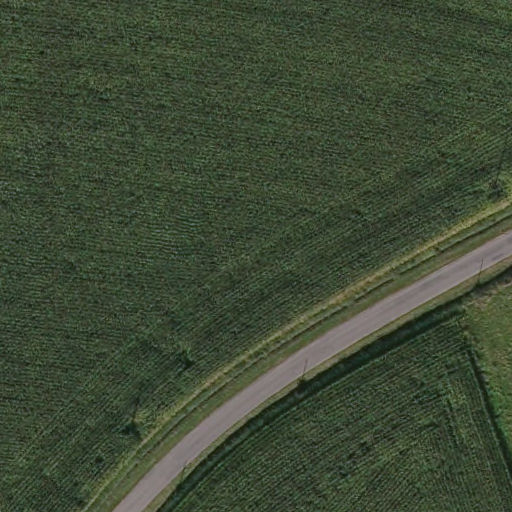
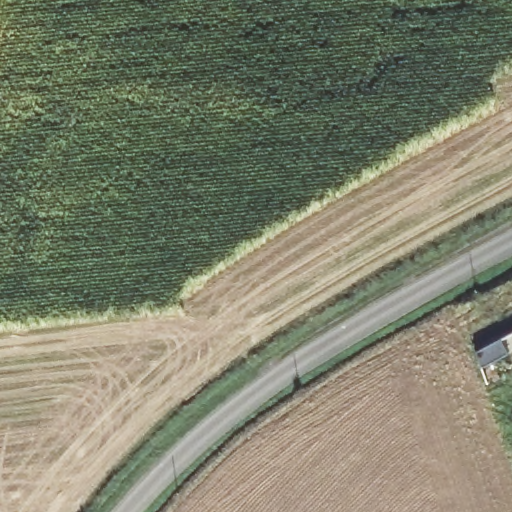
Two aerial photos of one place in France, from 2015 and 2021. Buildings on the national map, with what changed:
new [(501,340),(509,354),(482,368),(477,352),(501,340)]

